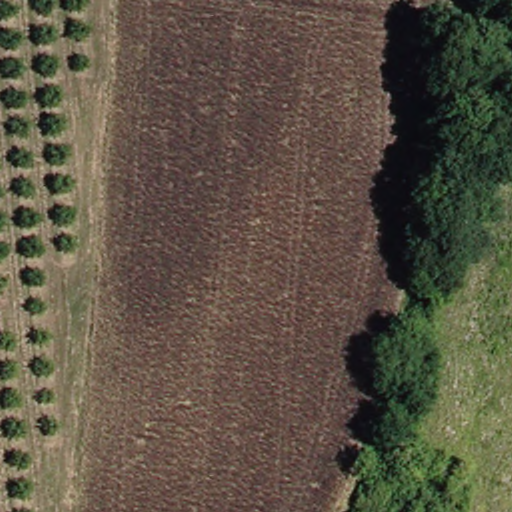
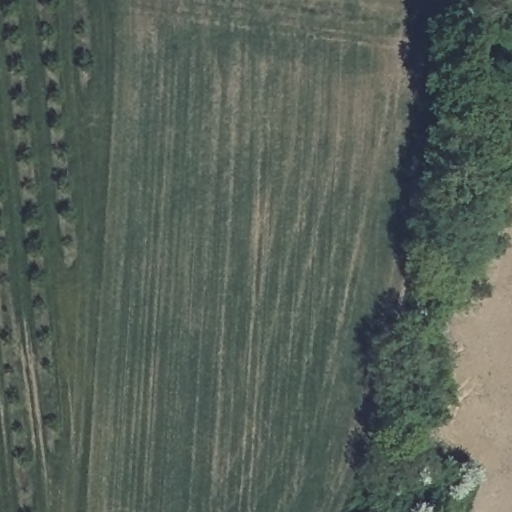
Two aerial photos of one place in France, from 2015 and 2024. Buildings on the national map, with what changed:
unchanged [(366,512),(356,512),(357,510),(366,512)]

